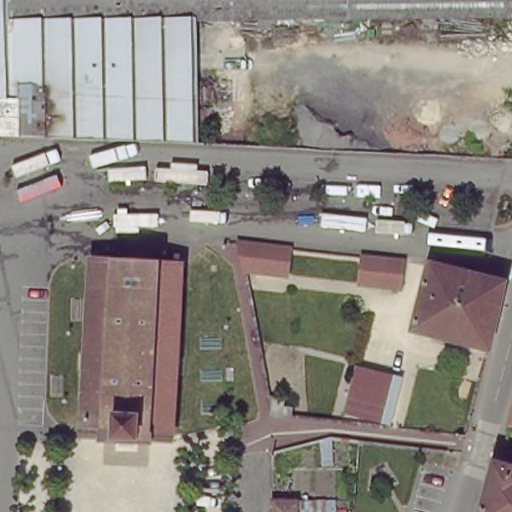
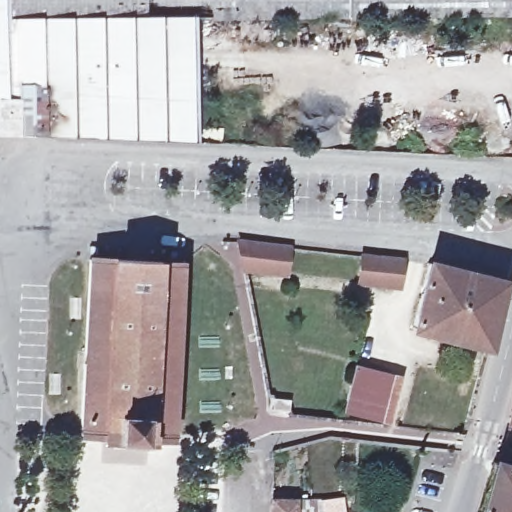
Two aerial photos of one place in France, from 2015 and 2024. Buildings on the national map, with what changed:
unchanged [(196,20),(191,148),(132,144),(84,143),(74,142),(0,139),(0,0),(400,0),(400,20),(248,20),(196,20)]
unchanged [(502,0),(502,19),(400,20),(400,0),(502,0)]
unchanged [(289,249),(286,277),(242,273),(237,244),(240,244),(289,249)]
unchanged [(104,440),(105,437),(83,435),(93,259),(183,263),(173,441),(151,439),(150,443),(104,440)]
unchanged [(402,264),(399,290),(359,287),(361,260),(375,262),(402,264)]
unchanged [(421,310),(429,267),(432,267),(504,287),(503,292),(492,336),(489,349),(416,335),(421,310)]
unchanged [(385,421),(349,414),(359,367),(394,374),(385,421)]
unchanged [(286,399),(284,419),(273,417),(276,398),(286,399)]
unchanged [(509,418),(512,404),(512,418),(509,418)]
unchanged [(487,472),(488,468),(494,470),(512,476),(512,512),(475,512),(487,472)]
unchanged [(269,499),(289,500),(289,512),(269,512),(269,499)]

